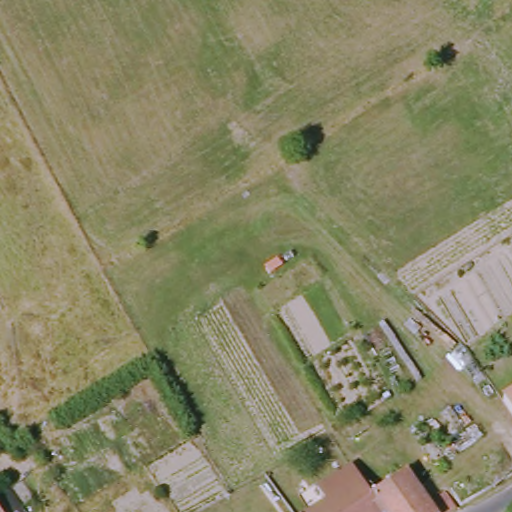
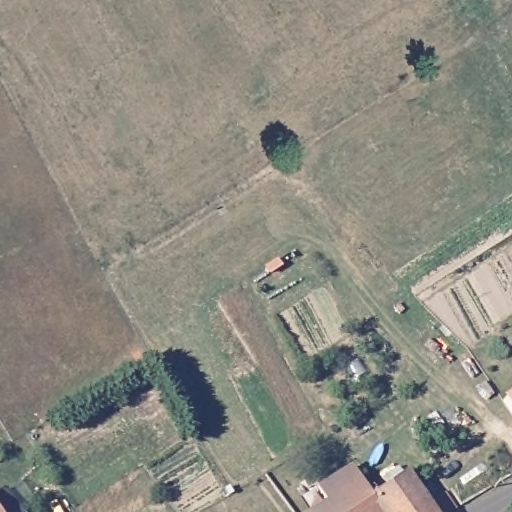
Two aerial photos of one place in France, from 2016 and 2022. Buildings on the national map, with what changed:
unchanged [(503,400),(512,394),(512,413),(503,400)]
unchanged [(314,487),(347,466),(367,495),(402,470),(430,512),(308,512),(324,501),(314,487)]

